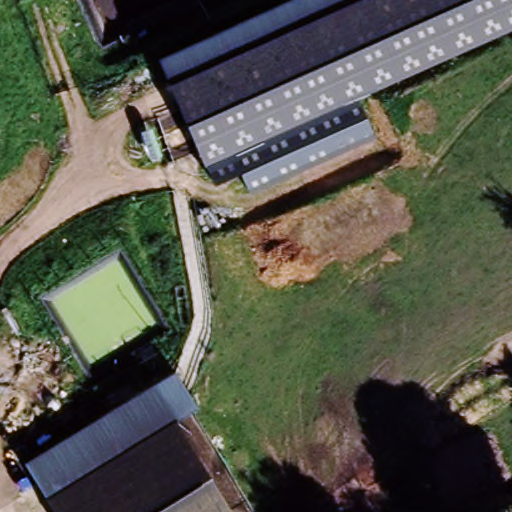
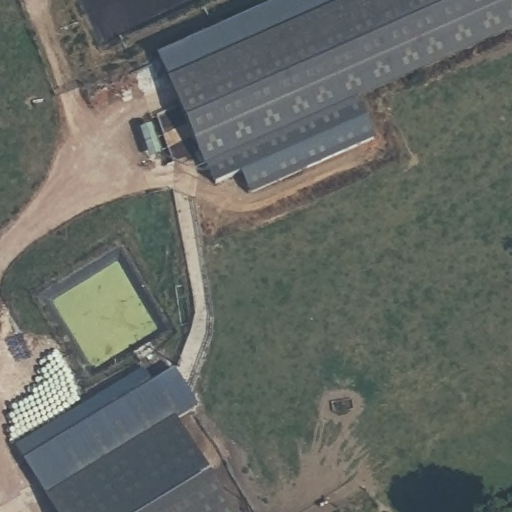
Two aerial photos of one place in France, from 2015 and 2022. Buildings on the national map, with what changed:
unchanged [(285,0),(358,0),(164,85),(156,57),(285,0)]
unchanged [(164,85),(358,0),(512,0),(512,27),(197,164),(164,85)]
unchanged [(249,190),(241,172),(209,187),(197,164),(356,94),(375,138),(249,190)]
unchanged [(44,498),(22,462),(173,371),(196,407),(173,421),(44,498)]
unchanged [(173,421),(227,512),(53,512),(44,498),(173,421)]

